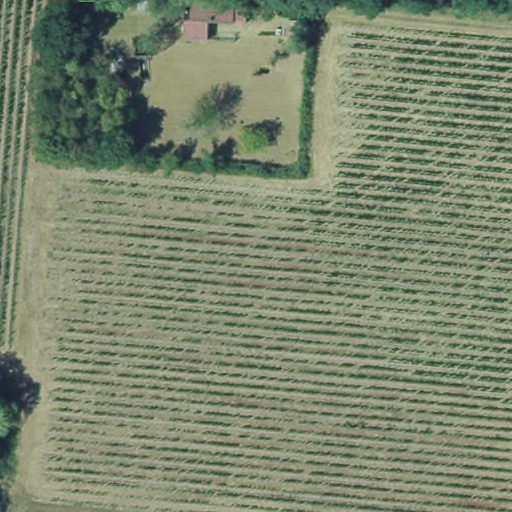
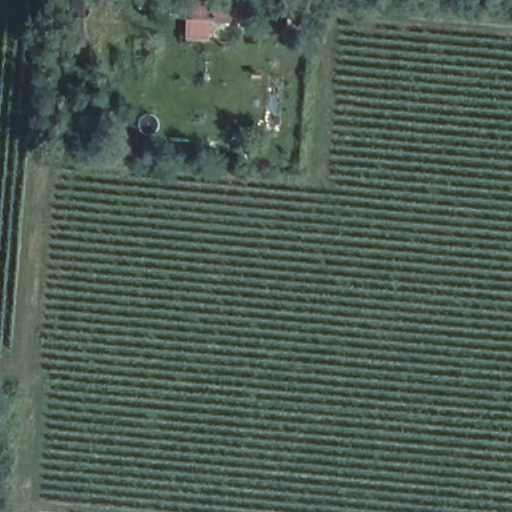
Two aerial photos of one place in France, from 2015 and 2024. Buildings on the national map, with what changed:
unchanged [(207,20),(207,38),(185,38),(187,12),(179,11),(172,11),(173,2),(179,2),(179,0),(192,0),(240,2),(239,21),(207,20)]
unchanged [(73,49),(55,48),(55,20),(73,21),(73,49)]

